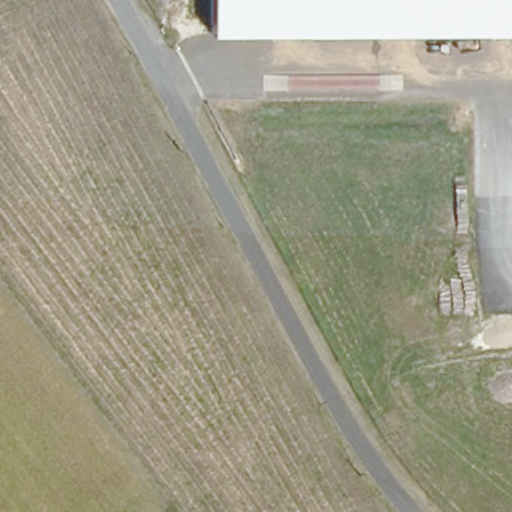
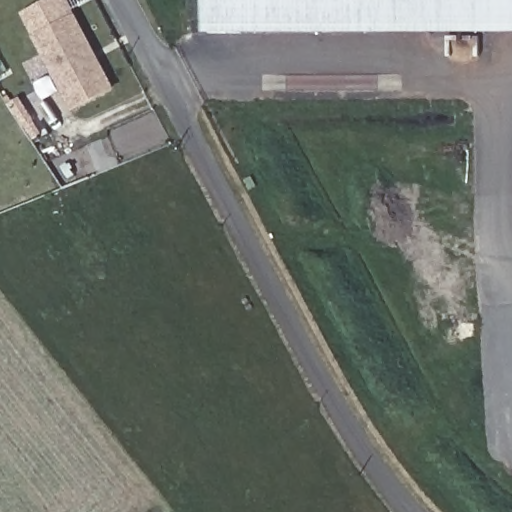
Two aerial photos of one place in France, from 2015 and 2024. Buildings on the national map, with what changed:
new [(21,15),(48,0),(69,0),(116,89),(73,112),(21,15)]
unchanged [(211,36),(211,0),(512,0),(512,33),(211,36)]

